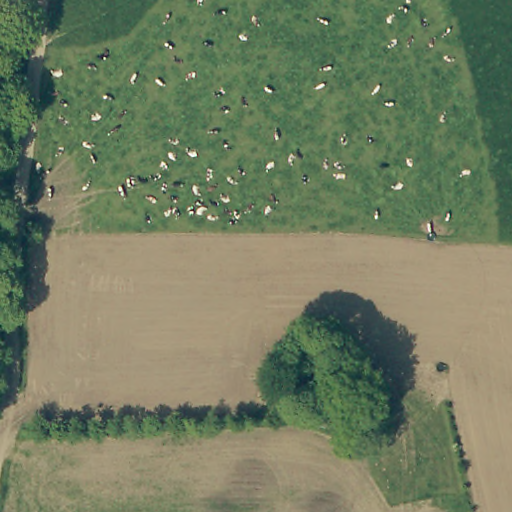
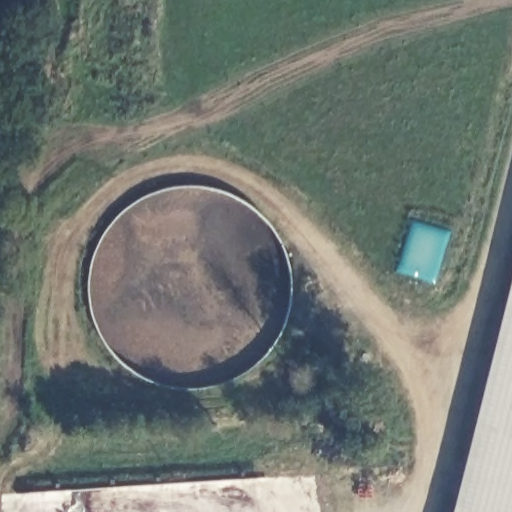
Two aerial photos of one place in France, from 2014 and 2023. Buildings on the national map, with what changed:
new [(512,267),(512,512),(450,512),(512,267)]

